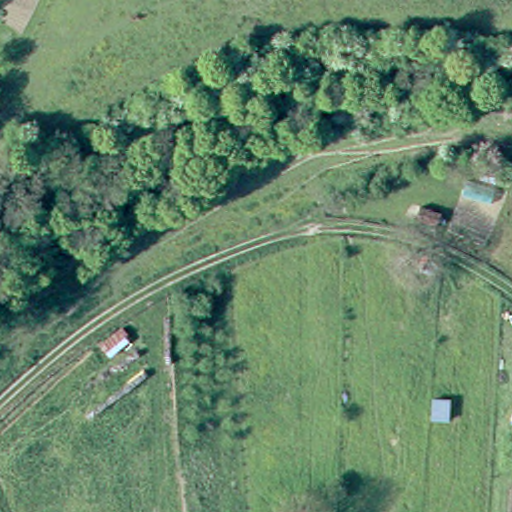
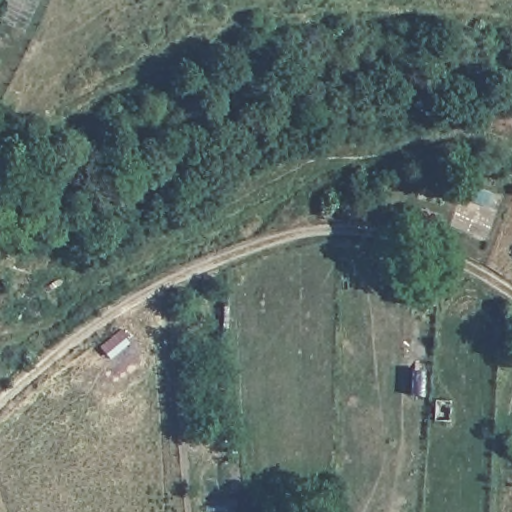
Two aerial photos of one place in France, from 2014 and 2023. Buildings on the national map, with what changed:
unchanged [(94,307),(88,302),(92,297),(99,302),(94,307)]
unchanged [(443,417),(429,416),(430,396),(445,397),(443,417)]

